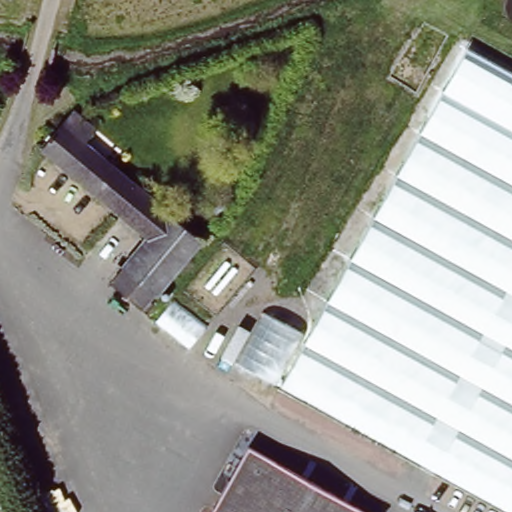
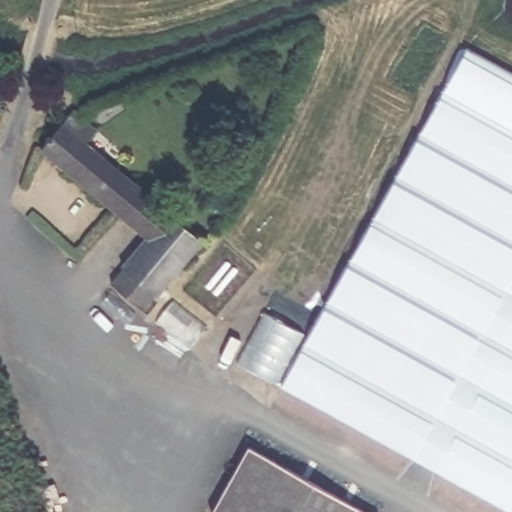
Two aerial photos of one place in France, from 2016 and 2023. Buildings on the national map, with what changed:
unchanged [(268,313),(306,335),(468,49),(512,74),(512,512),(508,512),(280,386),(238,361),(268,313)]
unchanged [(60,116),(76,104),(103,126),(98,144),(208,230),(152,318),(123,303),(112,292),(151,237),(42,158),(45,143),(23,129),(40,103),(60,116)]
unchanged [(248,433),(383,510),(383,512),(219,512),(208,505),(248,433)]

